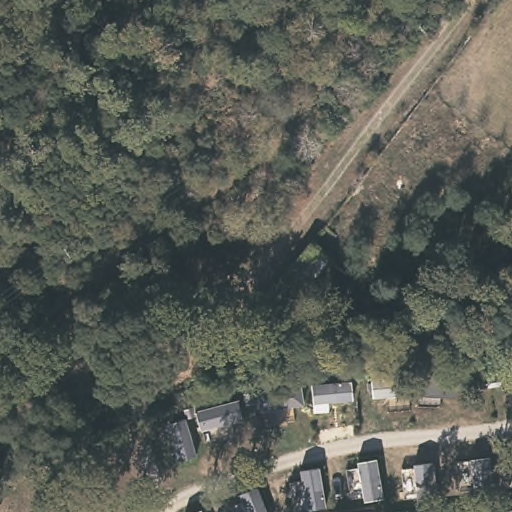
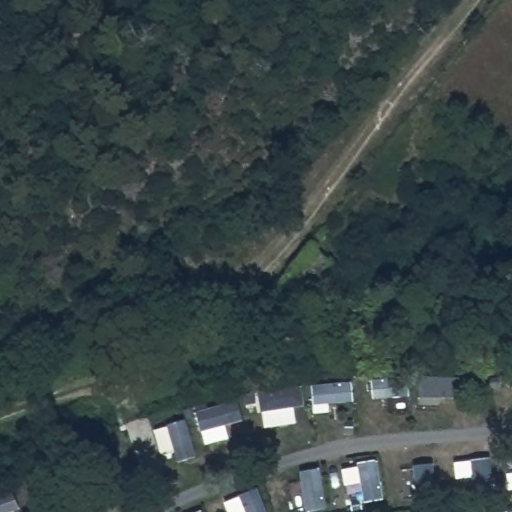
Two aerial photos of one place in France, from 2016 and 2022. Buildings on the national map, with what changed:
unchanged [(344,261),(290,324),(273,309),(327,246),(344,261)]

